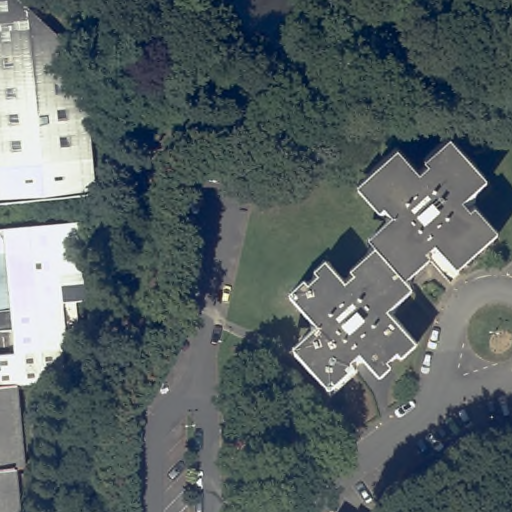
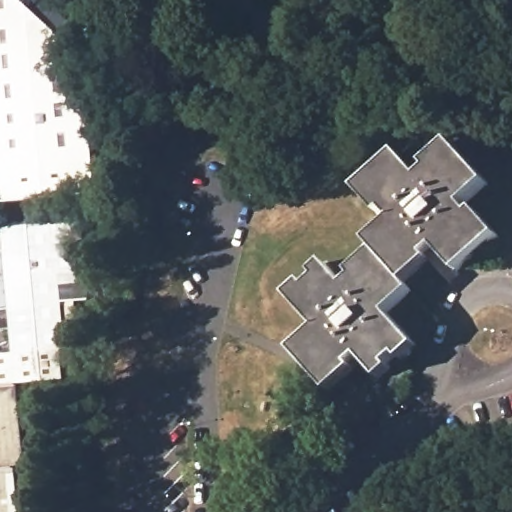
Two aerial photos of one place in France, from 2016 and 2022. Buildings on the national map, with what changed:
unchanged [(0,204),(0,0),(19,0),(46,25),(53,18),(73,36),(66,44),(84,73),(95,196),(0,204)]
unchanged [(369,247),(393,226),(384,216),(380,220),(358,195),(399,159),(421,182),(430,174),(427,170),(451,148),(487,189),(463,210),(472,219),(476,216),(498,240),(458,276),(436,252),(427,261),(430,265),(404,288),(411,296),(387,318),(416,351),(401,364),(398,360),(388,369),(391,373),(379,383),(360,361),(350,370),(354,374),(329,396),(293,356),(318,334),(289,301),(304,288),(309,292),(318,283),(314,279),(326,268),(346,290),(355,282),(351,278),(376,255),(369,247)]
unchanged [(12,330),(0,331),(0,229),(81,223),(85,273),(86,285),(60,288),(64,330),(12,335),(12,330)]
unchanged [(17,384),(0,386),(0,356),(14,355),(12,335),(64,330),(66,350),(61,351),(64,380),(17,384)]
unchanged [(17,384),(24,468),(16,469),(20,512),(0,512),(0,386),(17,384)]

